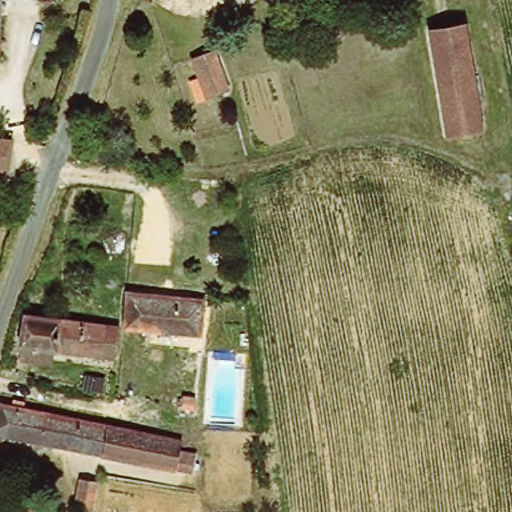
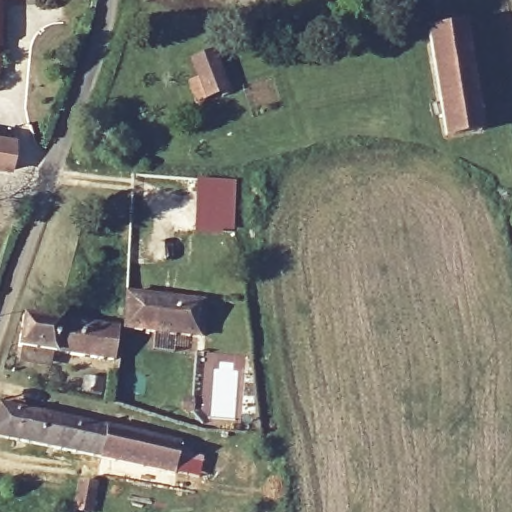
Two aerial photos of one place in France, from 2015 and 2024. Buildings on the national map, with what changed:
unchanged [(6,43),(0,75),(0,0),(51,0),(5,2),(6,43)]
unchanged [(482,26),(493,130),(458,134),(443,31),(482,26)]
unchanged [(204,54),(227,45),(241,77),(219,87),(204,54)]
unchanged [(11,145),(3,177),(0,177),(0,142),(11,145)]
new [(197,181),(233,182),(231,235),(196,235),(197,181)]
unchanged [(129,297),(207,298),(206,335),(125,331),(129,297)]
unchanged [(22,360),(28,342),(23,340),(32,308),(125,331),(117,363),(54,348),(51,365),(22,360)]
unchanged [(198,394),(199,383),(209,385),(208,395),(198,394)]
unchanged [(27,396),(52,402),(51,412),(118,426),(185,441),(179,470),(0,432),(0,407),(2,401),(24,406),(27,396)]
unchanged [(76,500),(85,469),(103,474),(97,504),(76,500)]

